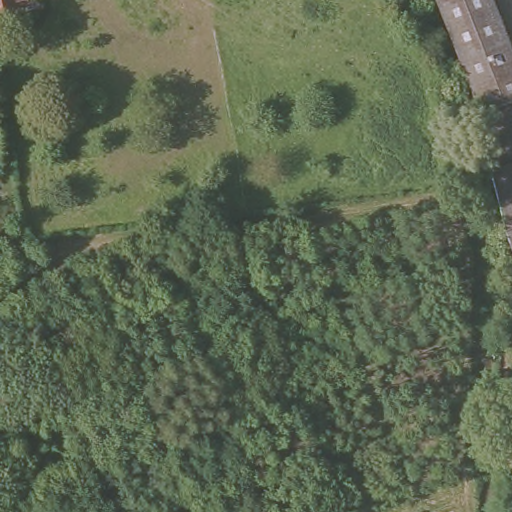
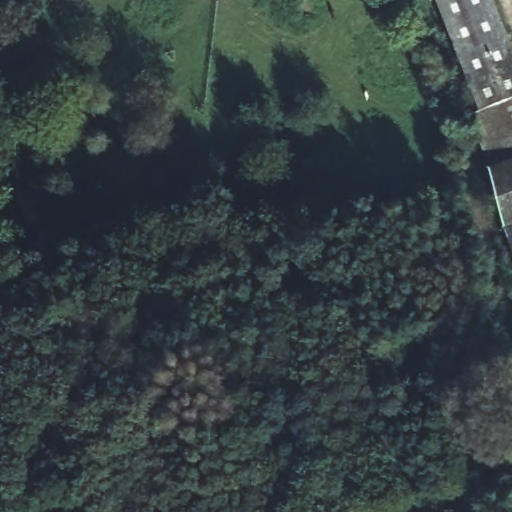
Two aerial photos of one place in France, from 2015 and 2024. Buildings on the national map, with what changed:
unchanged [(10,26),(1,0),(43,0),(47,12),(10,26)]
unchanged [(489,166),(433,0),(497,0),(512,44),(512,158),(489,166)]
unchanged [(509,231),(505,219),(488,172),(512,164),(512,239),(509,231)]

